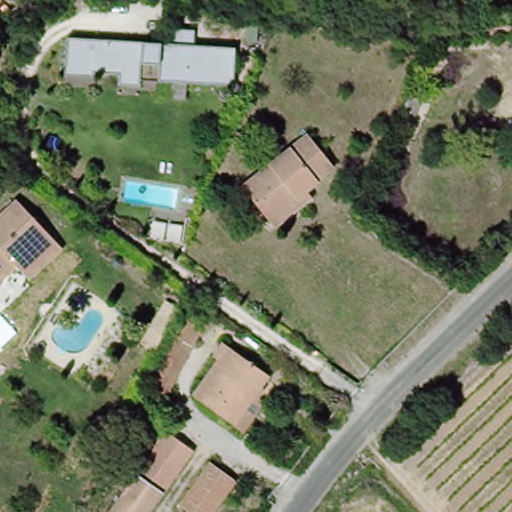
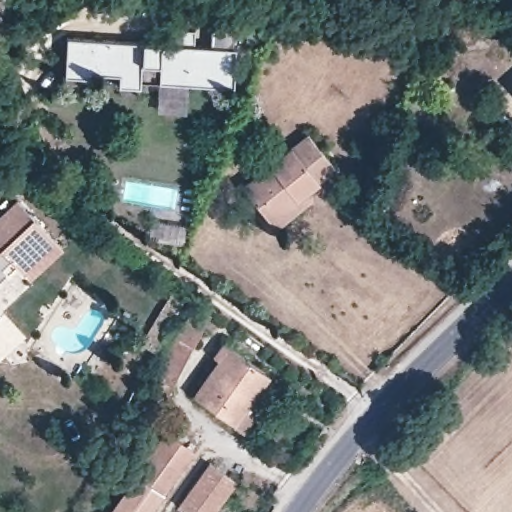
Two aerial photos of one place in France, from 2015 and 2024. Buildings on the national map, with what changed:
unchanged [(144,82),(122,80),(122,70),(99,67),(99,71),(69,70),(72,32),(172,40),(173,25),(199,26),(198,43),(240,45),(237,83),(162,77),(144,76),(144,82)]
unchanged [(279,227),(259,202),(249,183),(318,137),(344,174),(312,195),(315,203),(279,227)]
unchanged [(0,221),(21,202),(64,244),(72,252),(40,281),(33,275),(28,270),(1,293),(0,292),(0,221)]
unchanged [(164,332),(152,325),(158,315),(170,322),(164,332)]
unchanged [(155,373),(179,323),(197,330),(173,382),(155,373)]
unchanged [(249,431),(240,425),(202,396),(224,361),(220,360),(231,342),(275,373),(259,399),(267,406),(249,431)]
unchanged [(167,430),(195,448),(153,512),(114,512),(167,430)]
unchanged [(185,507),(214,465),(237,480),(217,512),(192,512),(185,507)]

